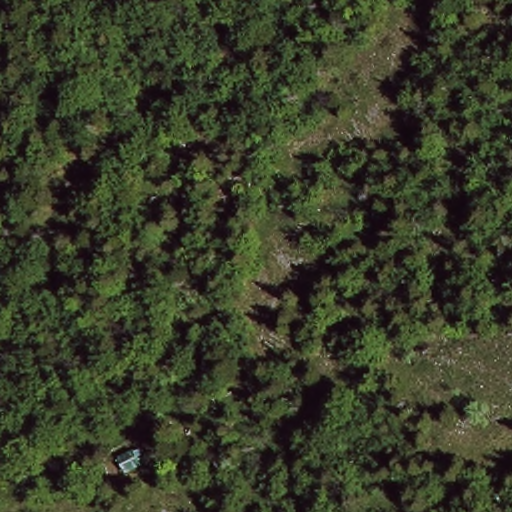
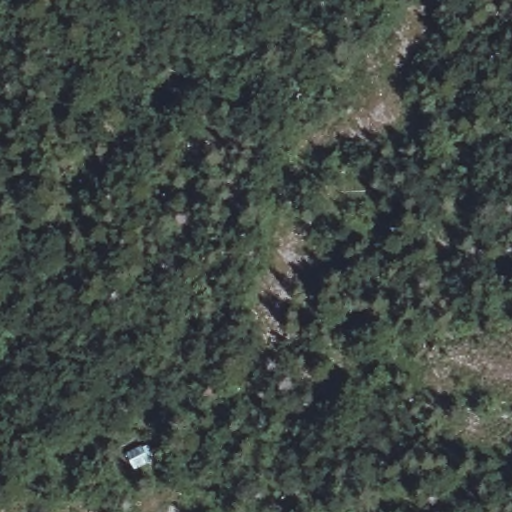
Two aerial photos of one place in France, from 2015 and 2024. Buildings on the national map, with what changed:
unchanged [(129,459),(147,449),(156,464),(146,469),(136,474),(129,459)]

